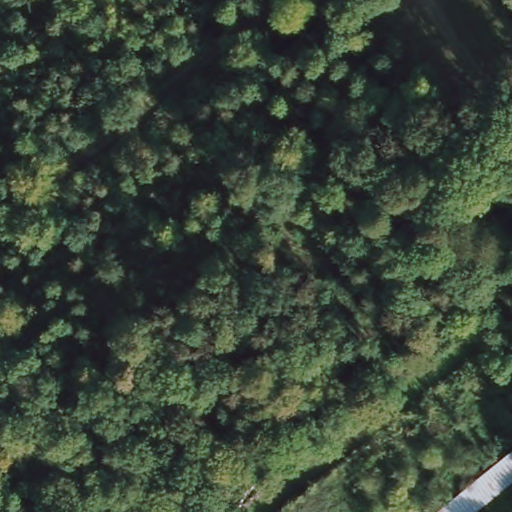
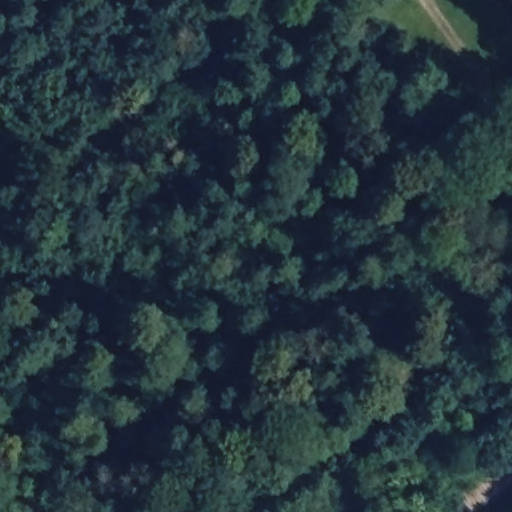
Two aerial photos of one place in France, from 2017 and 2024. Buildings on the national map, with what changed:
unchanged [(512,444),(512,475),(466,512),(428,512),(512,444)]

